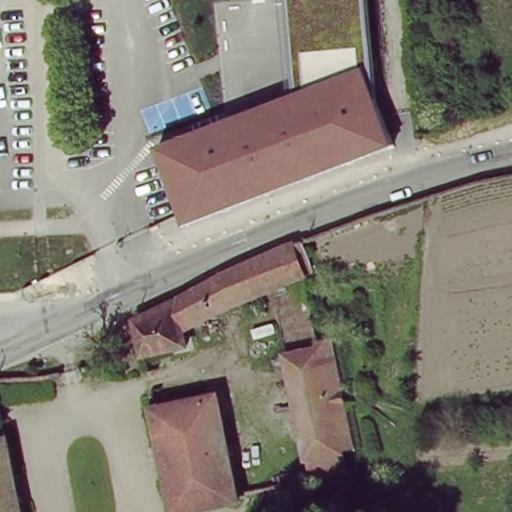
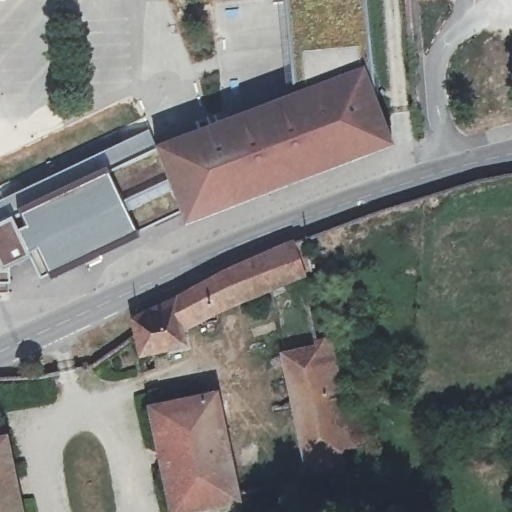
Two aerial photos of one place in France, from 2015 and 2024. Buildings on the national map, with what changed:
unchanged [(189,226),(157,148),(294,92),(287,0),(364,0),(368,74),(394,149),(189,226)]
new [(189,226),(44,293),(10,224),(35,214),(24,190),(149,129),(157,148),(189,226)]
new [(35,214),(10,224),(26,256),(5,268),(7,284),(0,284),(0,201),(24,190),(29,200),(35,214)]
unchanged [(297,239),(304,275),(233,305),(222,277),(297,239)]
unchanged [(233,305),(175,329),(180,347),(140,358),(134,336),(130,319),(164,306),(172,303),(222,277),(233,305)]
unchanged [(294,438),(284,393),(320,387),(314,355),(313,349),(336,344),(348,399),(360,451),(335,456),(300,463),(294,438)]
unchanged [(277,362),(314,355),(320,387),(284,393),(277,362)]
unchanged [(147,408),(212,392),(235,491),(236,495),(229,496),(170,510),(147,408)]
unchanged [(15,512),(0,512),(0,440),(1,440),(15,512)]

